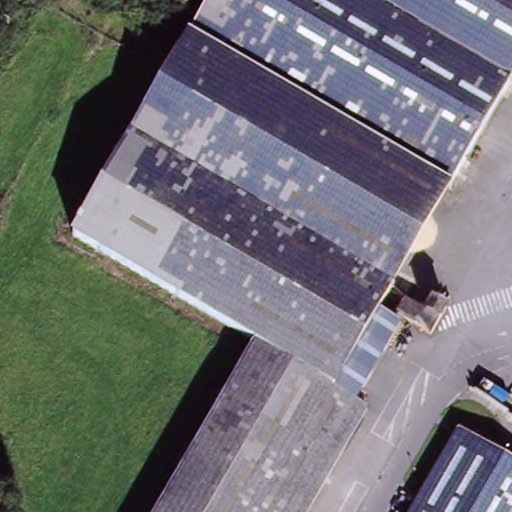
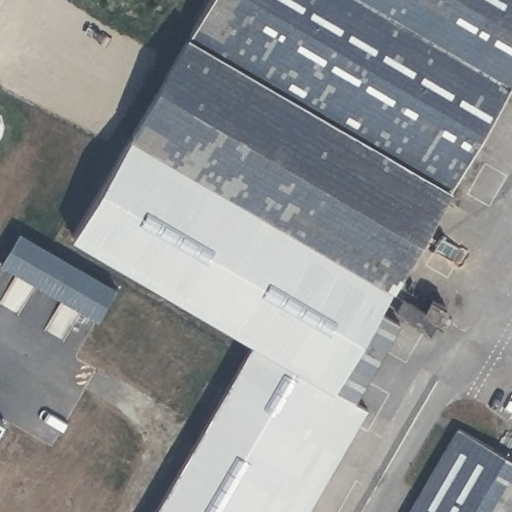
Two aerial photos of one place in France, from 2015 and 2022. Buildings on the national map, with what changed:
unchanged [(202,0),(512,0),(512,81),(453,182),(213,46),(184,30),(202,0)]
unchanged [(337,384),(335,387),(253,340),(68,232),(184,30),(213,46),(453,182),(337,384)]
new [(117,285),(98,317),(0,261),(18,230),(117,285)]
unchanged [(155,512),(253,340),(335,387),(264,512),(155,512)]
unchanged [(312,512),(264,512),(335,387),(337,384),(373,405),(312,512)]
new [(0,423),(0,412),(4,415),(0,423)]
unchanged [(410,512),(458,430),(512,461),(512,512),(410,512)]

